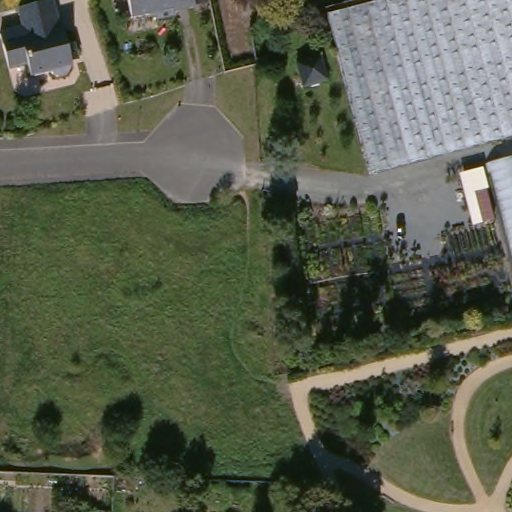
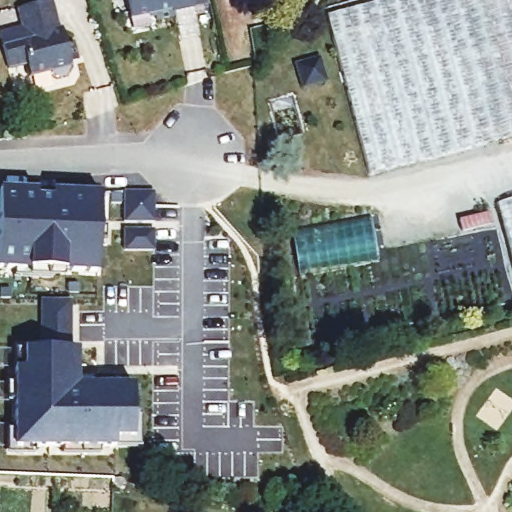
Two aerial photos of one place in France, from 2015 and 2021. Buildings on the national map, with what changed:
unchanged [(19,6),(45,0),(52,0),(58,27),(61,27),(65,44),(73,42),(75,56),(69,57),(70,64),(68,65),(69,67),(65,73),(55,75),(49,72),(49,69),(29,74),(26,62),(7,66),(0,35),(0,31),(23,25),(19,6)]
unchanged [(172,11),(173,14),(154,18),(153,12),(129,17),(125,0),(191,0),(192,6),(172,11)]
unchanged [(263,22),(259,0),(301,0),(304,13),(263,22)]
unchanged [(325,17),(390,0),(512,0),(512,138),(368,176),(325,17)]
unchanged [(302,85),(294,61),(319,54),(325,78),(302,85)]
new [(66,271),(29,269),(29,265),(0,265),(0,221),(1,188),(100,192),(97,272),(68,267),(66,271)]
unchanged [(498,205),(512,201),(512,260),(498,205)]
new [(73,296),(72,348),(79,348),(79,384),(131,382),(132,437),(117,439),(117,444),(13,445),(13,365),(24,366),(24,349),(41,348),(41,297),(73,296)]

